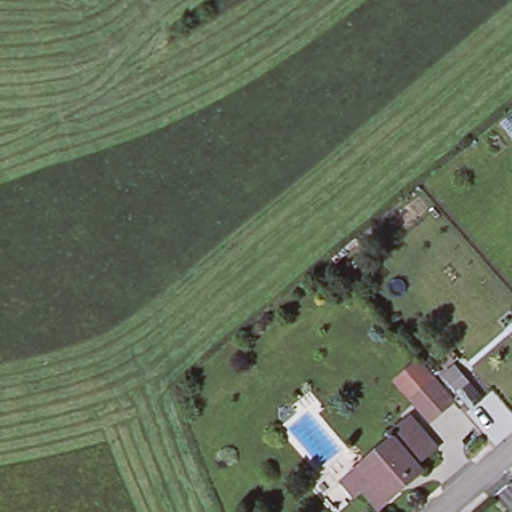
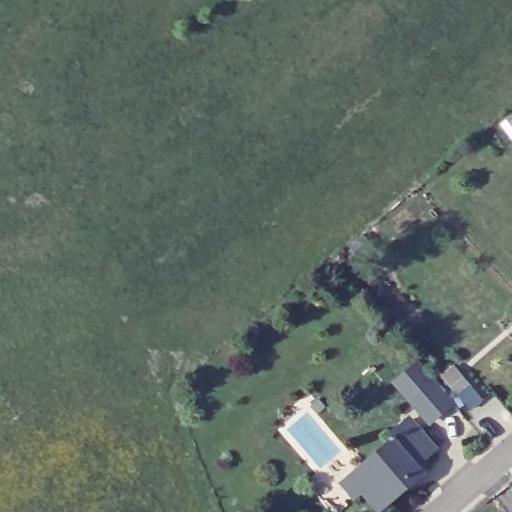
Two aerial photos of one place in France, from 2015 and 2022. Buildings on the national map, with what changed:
unchanged [(429,423),(409,400),(394,383),(399,379),(417,364),(431,381),(452,404),(429,423)]
unchanged [(356,472),(392,441),(388,437),(410,419),(416,415),(442,444),(436,449),(416,467),(418,470),(422,475),(398,495),(379,511),(361,491),(354,497),(344,483),(356,472)]

